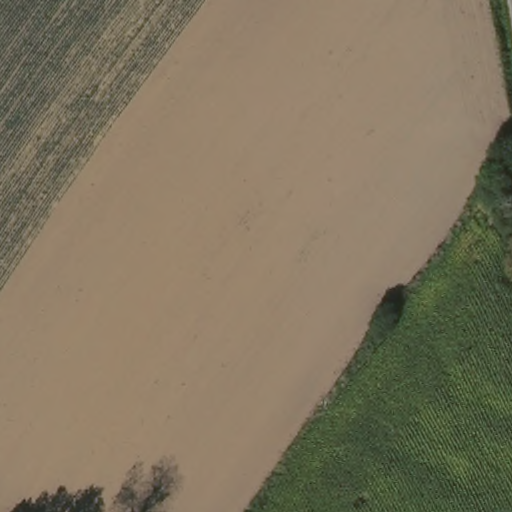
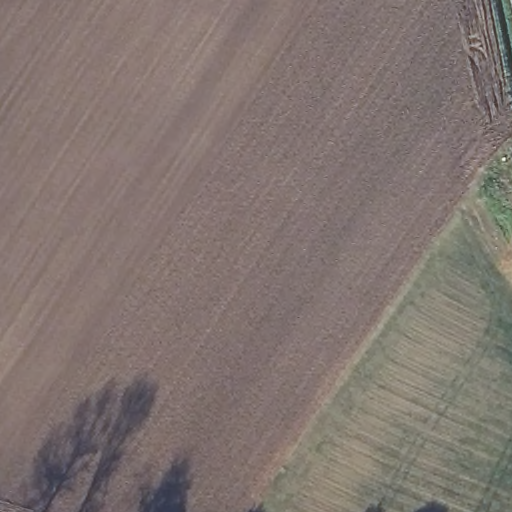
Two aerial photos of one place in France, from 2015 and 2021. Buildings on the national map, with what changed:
[]

